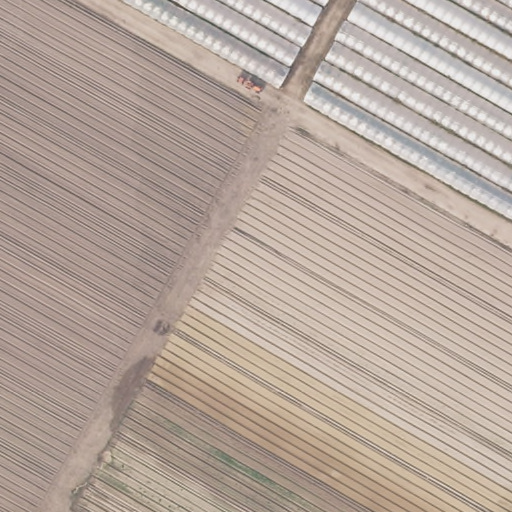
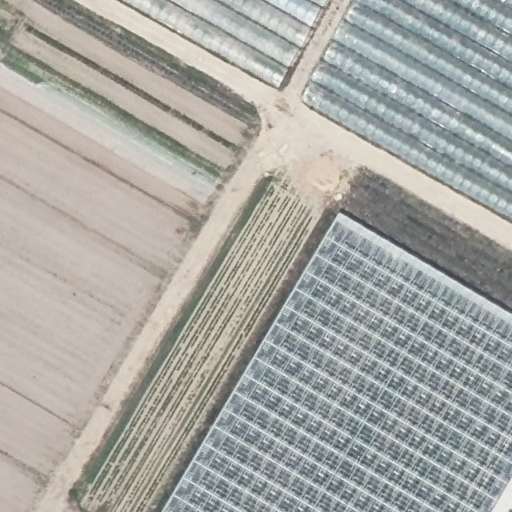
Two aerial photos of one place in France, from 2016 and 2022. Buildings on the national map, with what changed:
new [(130,0),(328,0),(279,85),(130,0)]
new [(303,97),(359,0),(512,0),(512,215),(303,97)]
new [(512,316),(512,478),(492,512),(165,512),(338,215),(512,316)]
new [(492,512),(512,478),(512,512),(492,512)]

